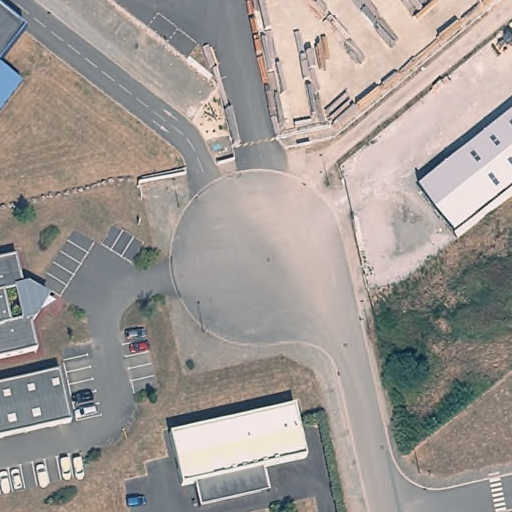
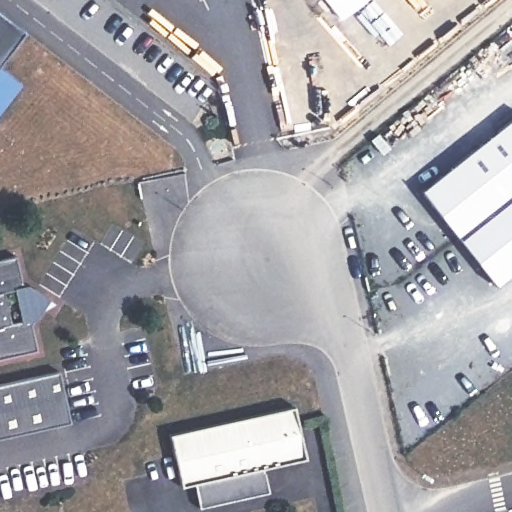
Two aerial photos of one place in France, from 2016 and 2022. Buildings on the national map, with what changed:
unchanged [(0,64),(0,18),(23,36),(0,64)]
unchanged [(0,111),(0,74),(18,88),(0,111)]
unchanged [(456,237),(419,191),(512,117),(512,193),(456,237)]
new [(512,193),(512,275),(497,287),(456,237),(512,193)]
unchanged [(26,281),(52,298),(35,324),(41,350),(0,359),(0,260),(21,255),(26,281)]
unchanged [(73,423),(0,438),(0,384),(62,371),(73,423)]
unchanged [(169,438),(294,411),(305,463),(263,472),(269,496),(198,511),(193,487),(180,490),(169,438)]

